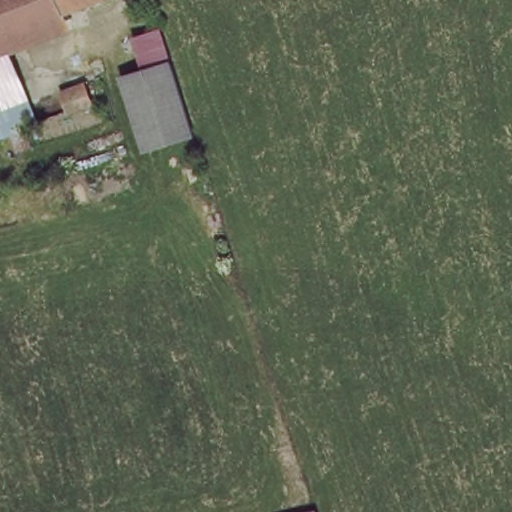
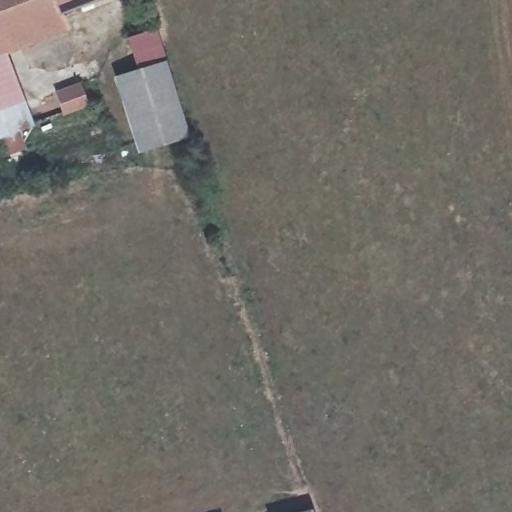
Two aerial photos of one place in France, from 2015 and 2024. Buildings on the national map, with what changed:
unchanged [(58,13),(0,38),(0,0),(94,0),(58,13)]
unchanged [(58,13),(65,32),(0,58),(0,38),(58,13)]
unchanged [(112,77),(135,70),(125,36),(151,28),(172,95),(122,109),(112,77)]
unchanged [(20,129),(0,136),(0,69),(20,129)]
unchanged [(75,90),(80,106),(58,114),(52,98),(75,90)]
unchanged [(172,95),(183,134),(134,150),(122,109),(172,95)]

